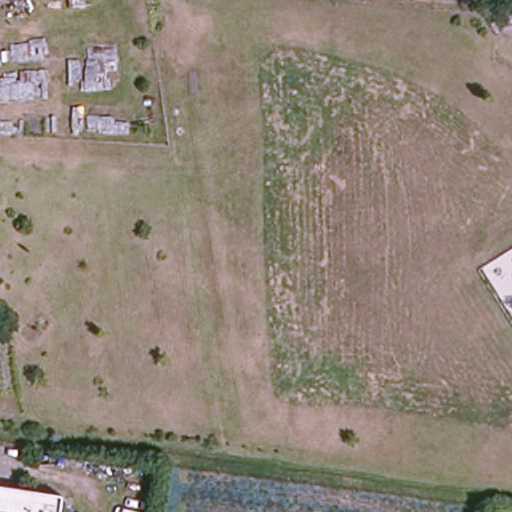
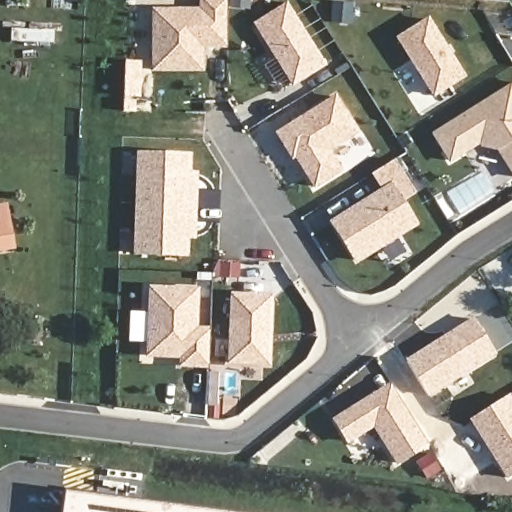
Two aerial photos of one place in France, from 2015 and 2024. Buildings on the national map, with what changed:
unchanged [(5,1),(0,1),(0,0),(5,0),(5,1)]
new [(151,72),(151,8),(198,8),(198,0),(227,0),(227,49),(204,48),(203,73),(151,72)]
new [(251,23),(286,1),(325,66),(291,87),(251,23)]
new [(432,98),(395,37),(428,17),(466,77),(432,98)]
new [(512,84),(512,108),(508,111),(512,117),(512,178),(495,151),(478,147),(476,143),(446,161),(430,134),(512,84)]
new [(343,172),(313,191),(294,160),(291,161),(274,133),(335,97),(360,133),(330,152),(343,172)]
new [(188,174),(198,174),(196,222),(187,222),(186,258),(134,258),(136,152),(189,153),(188,174)]
new [(404,200),(418,225),(355,265),(328,221),(379,189),(370,174),(394,159),(415,194),(404,200)]
new [(14,250),(0,252),(0,205),(6,204),(14,250)]
new [(178,369),(178,360),(145,358),(147,285),(199,287),(198,326),(210,327),(207,370),(178,369)]
new [(270,367),(231,366),(234,294),(273,295),(270,367)]
new [(428,399),(404,359),(472,317),(496,355),(428,399)]
new [(397,466),(373,428),(347,445),(330,419),(389,383),(427,446),(397,466)]
new [(505,478),(468,420),(507,394),(512,401),(512,474),(505,478)]
demolished [(53,512),(0,512),(0,490),(55,496),(53,512)]
unchanged [(73,512),(75,495),(215,512),(73,512)]

